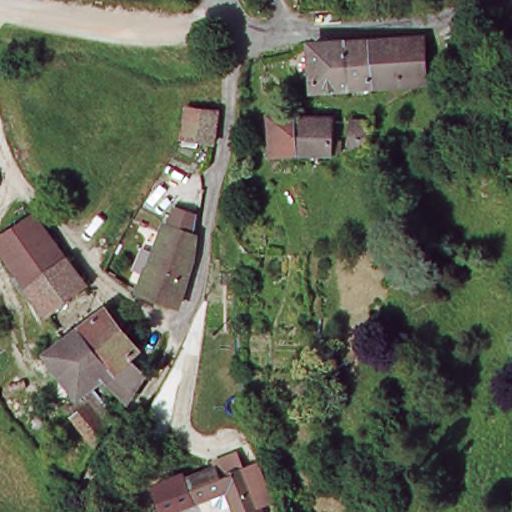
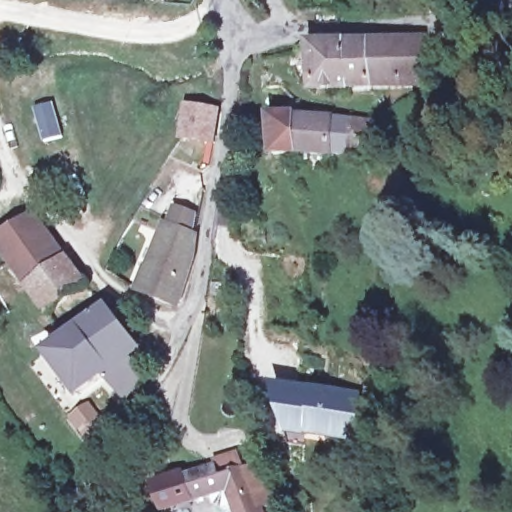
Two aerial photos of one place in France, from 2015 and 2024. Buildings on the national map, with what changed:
unchanged [(407,45),(422,44),(423,43),(422,76),(407,75),(407,91),(379,91),(377,45),(407,45)]
unchanged [(350,90),(323,90),(315,91),(313,45),(346,44),(350,90)]
unchanged [(379,91),(350,90),(346,44),(375,46),(377,45),(379,91)]
unchanged [(215,110),(210,137),(210,143),(181,138),(187,106),(215,110)]
unchanged [(332,119),(350,119),(352,151),(334,151),(305,151),(281,151),(253,151),(252,114),(280,114),(280,120),(304,119),(332,119)]
unchanged [(0,236),(28,213),(48,233),(7,261),(0,250),(0,236)]
unchanged [(198,228),(179,302),(143,282),(163,219),(198,228)]
unchanged [(91,279),(50,314),(7,261),(48,233),(91,279)]
unchanged [(145,347),(133,357),(142,373),(125,396),(105,373),(83,391),(50,350),(110,304),(145,347)]
new [(297,384),(362,391),(355,442),(295,435),(284,435),(276,409),(272,383),(297,384)]
unchanged [(108,418),(96,441),(80,417),(97,403),(108,418)]
unchanged [(182,506),(167,512),(157,486),(193,473),(190,467),(212,459),(218,476),(232,471),(247,511),(243,512),(184,512),(182,506)]

